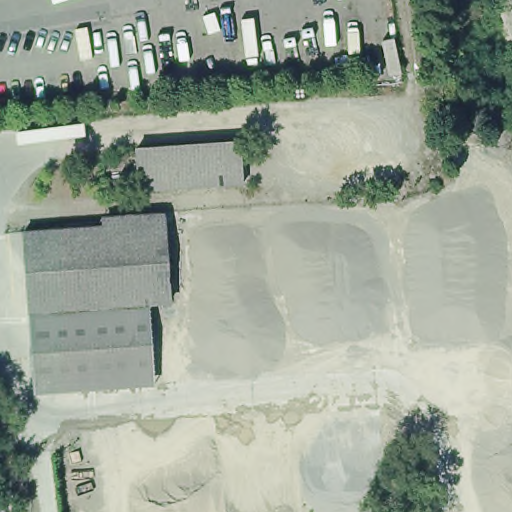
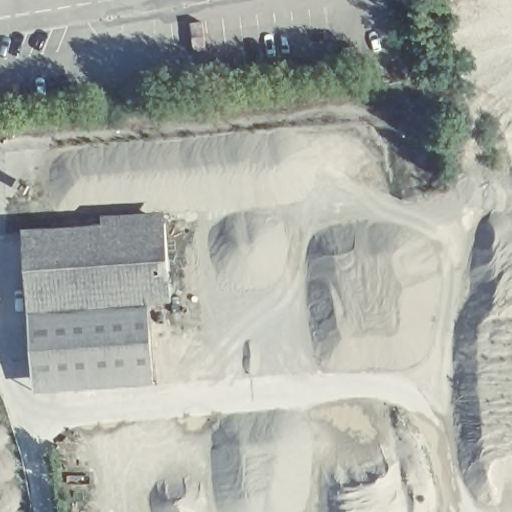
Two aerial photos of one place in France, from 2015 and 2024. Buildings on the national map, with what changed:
demolished [(240,144),(245,188),(140,196),(137,149),(240,144)]
unchanged [(101,222),(100,214),(159,213),(172,302),(179,383),(35,392),(22,227),(101,222)]
demolished [(450,224),(468,222),(470,237),(451,239),(450,224)]

